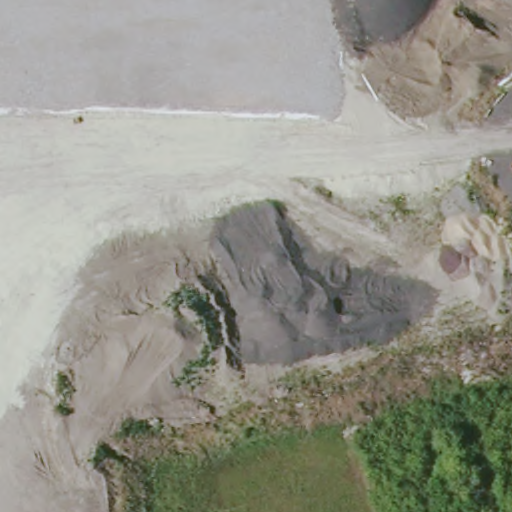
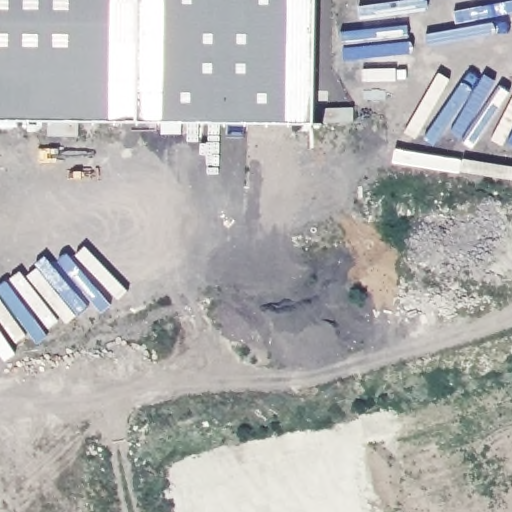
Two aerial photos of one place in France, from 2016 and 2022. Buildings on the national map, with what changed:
new [(0,121),(0,0),(315,0),(314,125),(0,121)]

